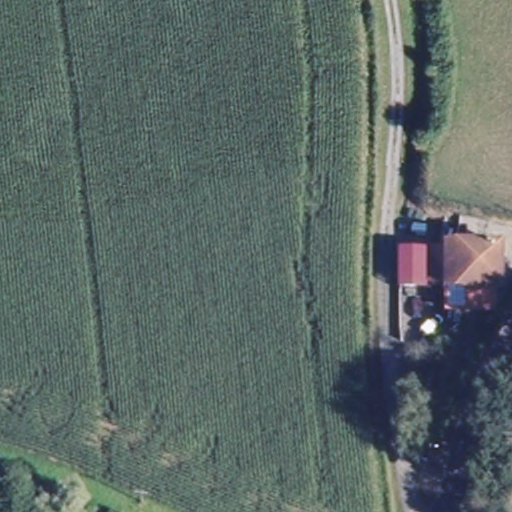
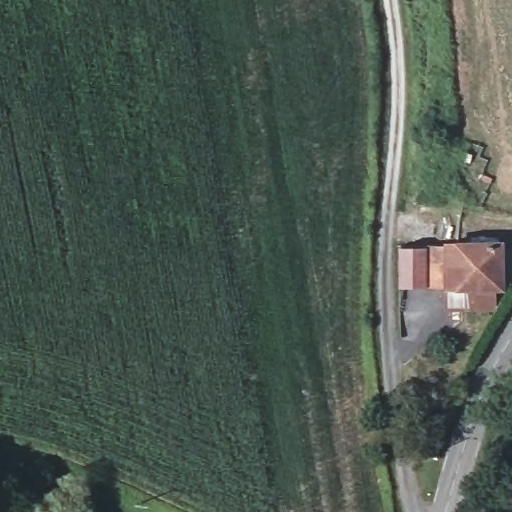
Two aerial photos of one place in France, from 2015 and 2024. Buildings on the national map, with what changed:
unchanged [(461,284),(424,279),(425,234),(501,240),(500,282),(490,282),(488,305),(460,303),(461,284)]

